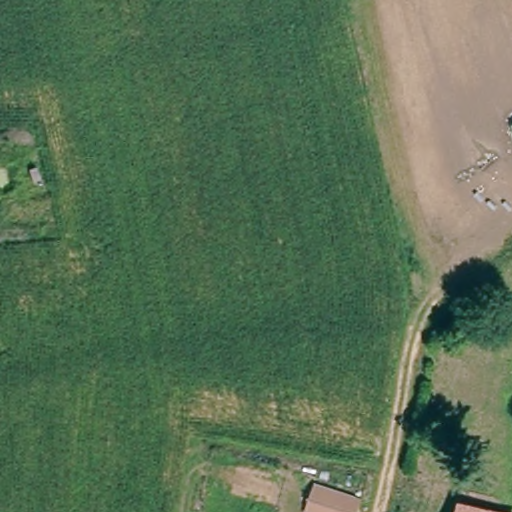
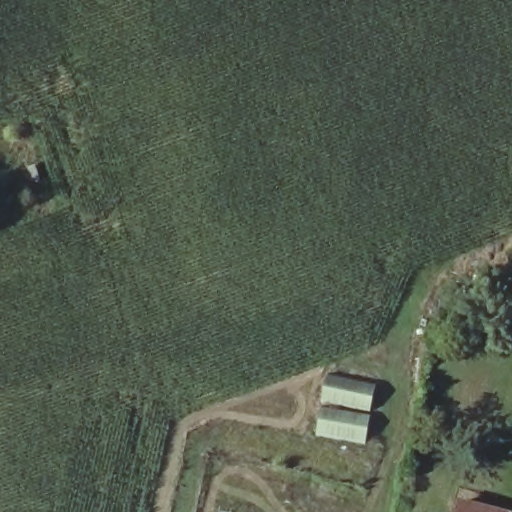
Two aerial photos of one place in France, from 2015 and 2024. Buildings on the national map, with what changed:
new [(327,378),(376,383),(367,440),(318,433),(322,403),(327,378)]
unchanged [(364,495),(357,512),(309,512),(305,510),(315,478),(364,495)]
unchanged [(467,487),(512,498),(512,512),(461,512),(467,487)]

